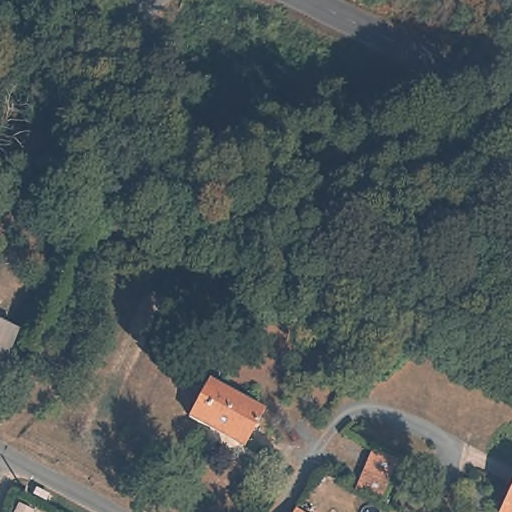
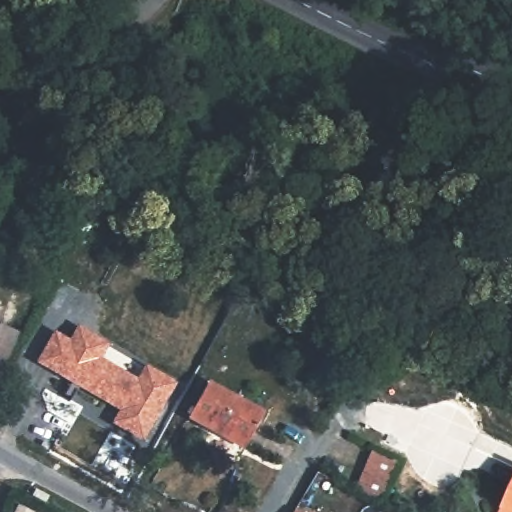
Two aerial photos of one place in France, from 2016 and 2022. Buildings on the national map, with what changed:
unchanged [(0,324),(19,332),(0,377),(0,324)]
new [(51,332),(69,344),(78,326),(107,342),(99,358),(139,381),(146,365),(174,382),(145,442),(115,424),(121,410),(35,361),(51,332)]
unchanged [(245,442),(210,424),(209,427),(189,416),(208,380),(263,408),(245,442)]
unchanged [(390,457),(400,461),(382,505),(354,493),(371,448),(390,457)]
unchanged [(502,512),(498,511),(512,480),(512,512),(502,512)]
unchanged [(14,512),(18,503),(35,511),(35,512),(14,512)]
unchanged [(303,512),(292,512),(295,508),(303,512)]

